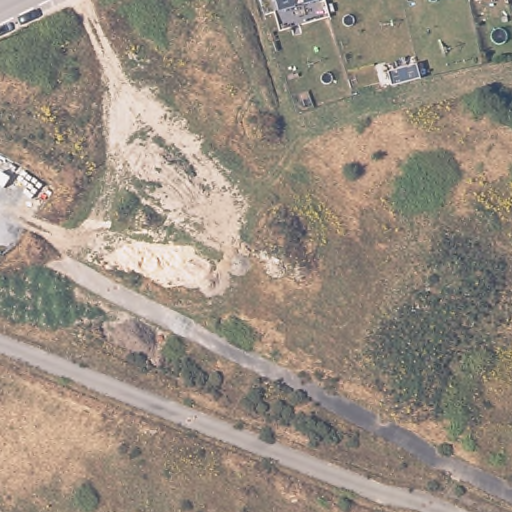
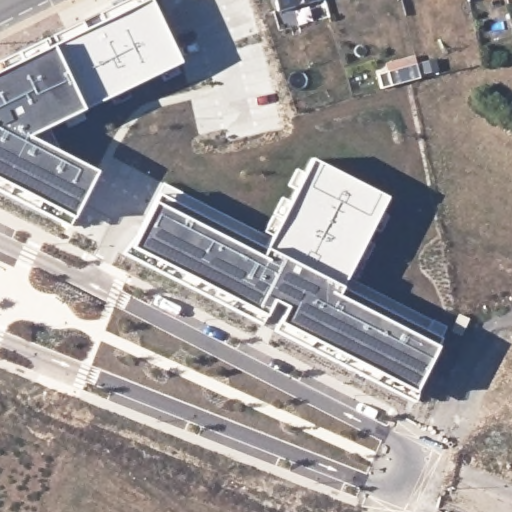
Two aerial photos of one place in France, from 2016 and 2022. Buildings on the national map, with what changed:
new [(145,0),(149,0),(180,64),(81,109),(26,138),(95,172),(72,218),(68,227),(0,192),(0,73),(52,47),(145,0)]
unchanged [(278,12),(275,0),(317,0),(278,12)]
new [(213,210),(270,238),(311,159),(385,198),(345,276),(383,296),(431,320),(446,327),(440,340),(435,349),(415,392),(412,400),(274,331),(278,323),(285,309),(271,302),(264,319),(261,326),(122,255),(128,244),(131,247),(153,204),(158,194),(163,185),(213,210)]

